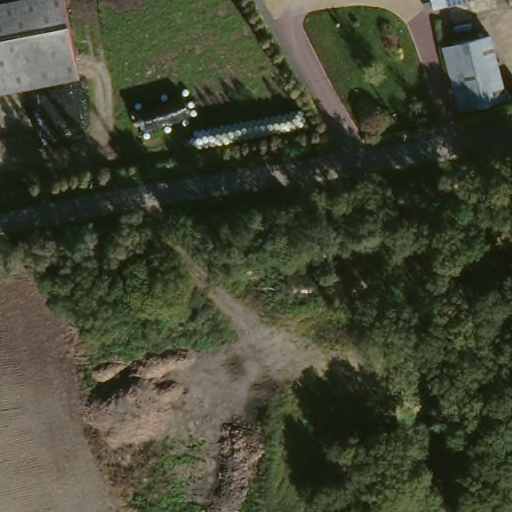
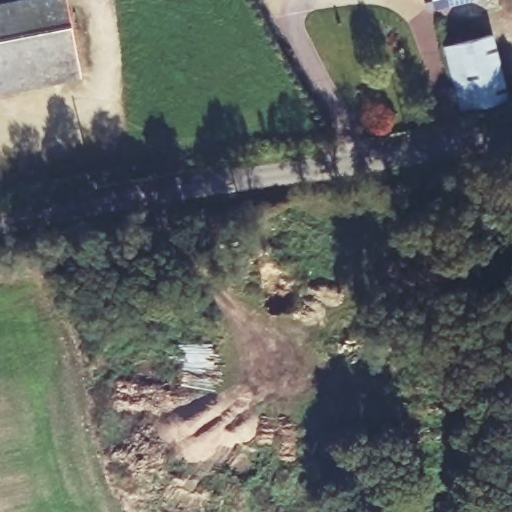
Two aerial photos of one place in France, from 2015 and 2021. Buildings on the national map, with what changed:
unchanged [(0,92),(0,0),(71,0),(85,76),(0,92)]
unchanged [(426,10),(423,0),(460,0),(434,7),(426,10)]
unchanged [(494,30),(512,87),(512,95),(462,105),(446,45),(494,30)]

